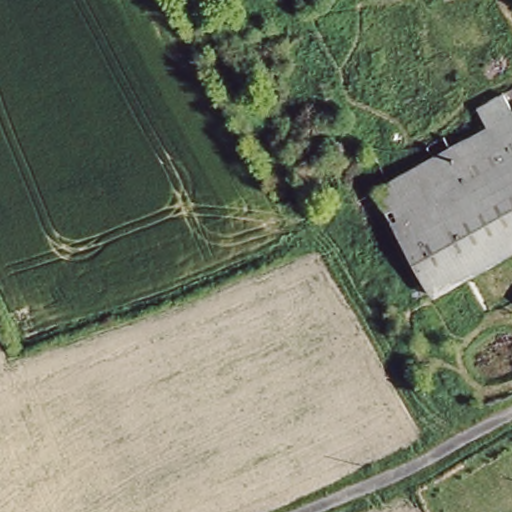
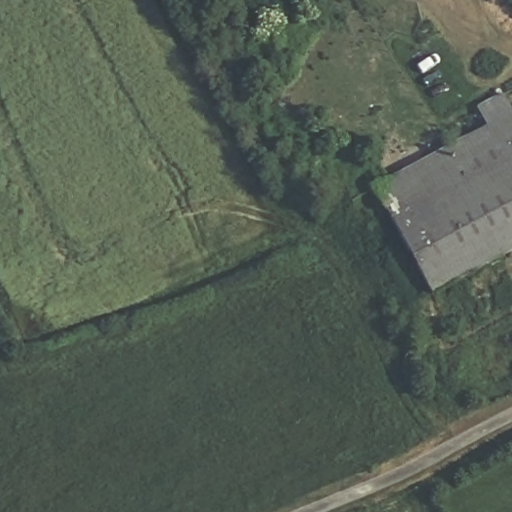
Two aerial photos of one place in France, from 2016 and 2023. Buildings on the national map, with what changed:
unchanged [(371,187),(512,115),(512,233),(469,255),(486,296),(434,322),(371,187)]

